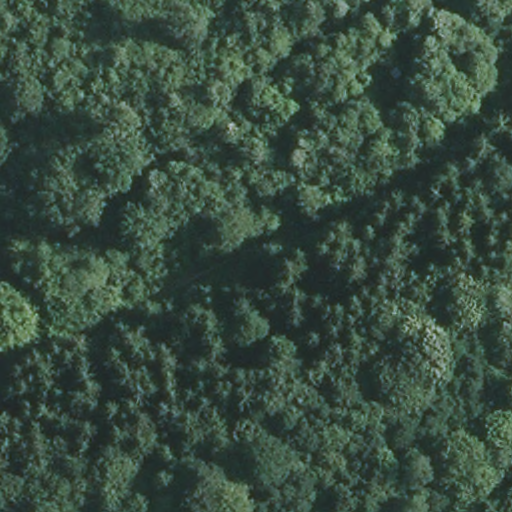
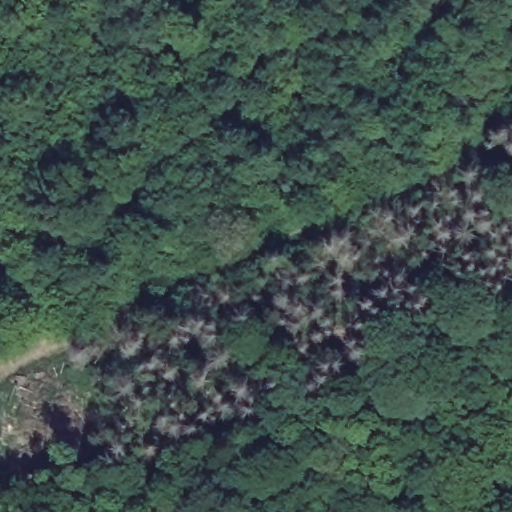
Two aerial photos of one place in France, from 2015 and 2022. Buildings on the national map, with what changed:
unchanged [(5,290),(0,292),(0,269),(5,290)]

